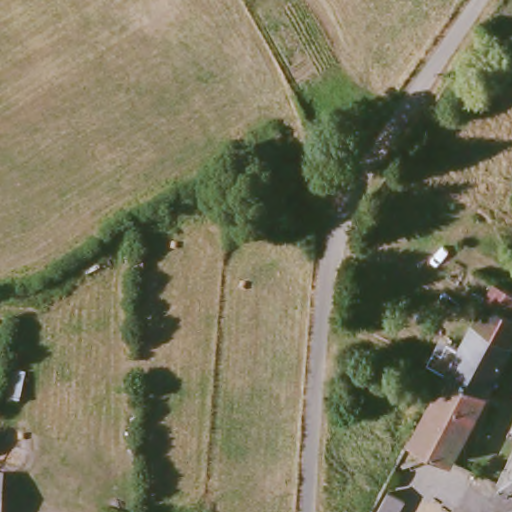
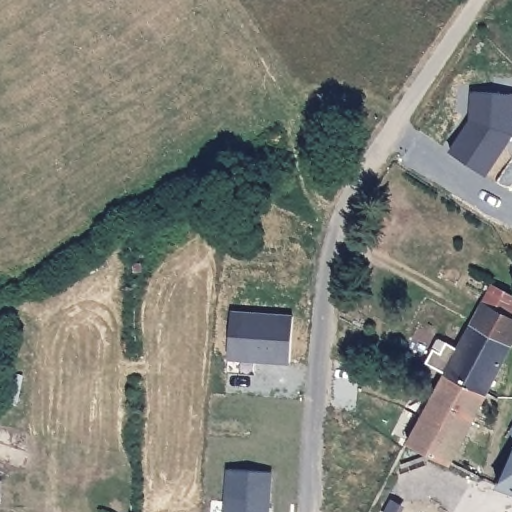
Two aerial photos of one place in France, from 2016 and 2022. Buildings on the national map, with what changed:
new [(470,117),(471,92),(512,95),(512,134),(487,174),(450,150),(470,117)]
unchanged [(430,386),(441,365),(425,356),(432,342),(440,346),(445,335),(454,340),(467,316),(490,277),(500,279),(501,280),(500,281),(512,287),(512,290),(504,306),(512,310),(512,322),(482,384),(470,407),(430,386)]
new [(234,316),(295,322),(291,367),(258,364),(256,379),(228,376),(230,361),(234,316)]
unchanged [(470,407),(445,458),(445,459),(404,434),(403,434),(426,390),(430,386),(470,407)]
unchanged [(505,427),(512,415),(512,432),(505,427)]
unchanged [(510,440),(512,440),(512,487),(491,479),(510,440)]
new [(227,472),(270,476),(268,512),(223,512),(227,472)]
unchanged [(405,510),(404,512),(386,512),(390,503),(405,510)]

